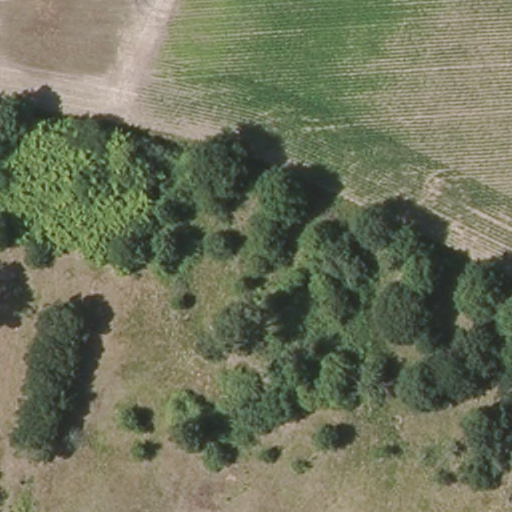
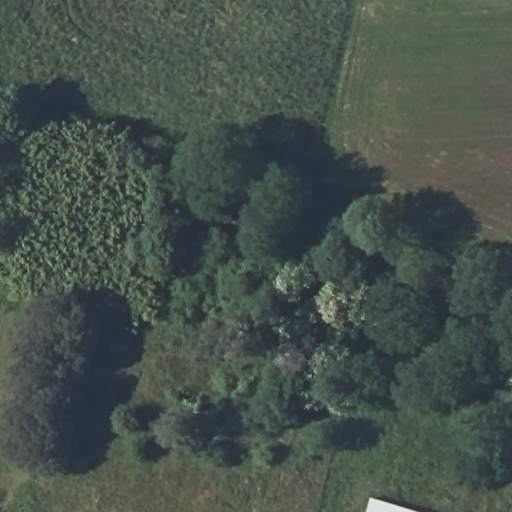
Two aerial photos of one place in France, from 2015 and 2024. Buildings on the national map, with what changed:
new [(417,512),(371,512),(375,499),(417,512)]

